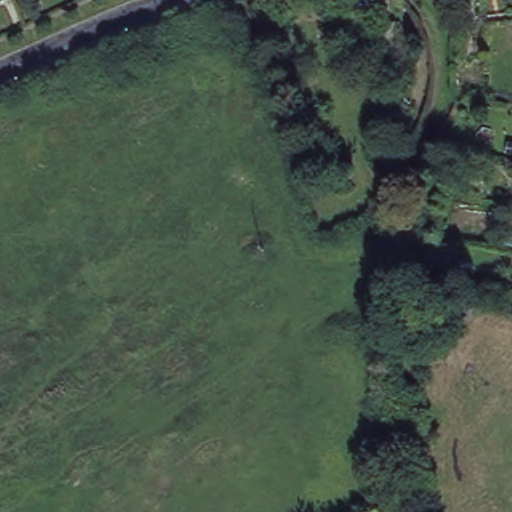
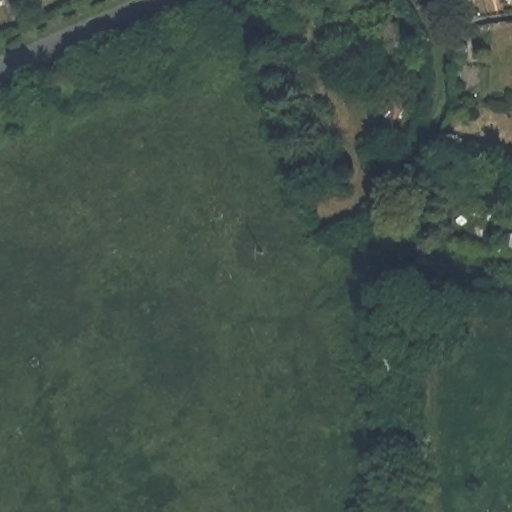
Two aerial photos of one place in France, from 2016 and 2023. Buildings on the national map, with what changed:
unchanged [(378,25),(394,21),(402,52),(386,56),(378,25)]

